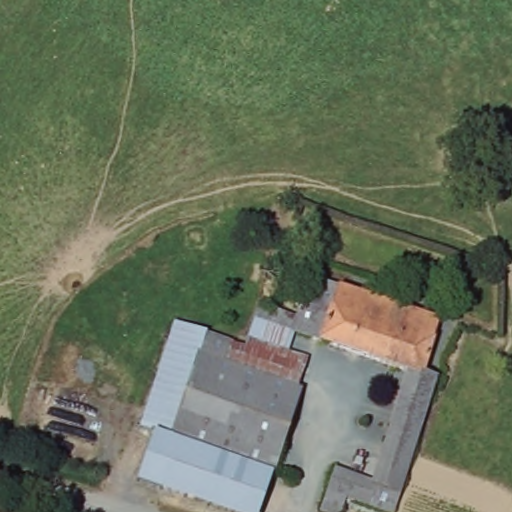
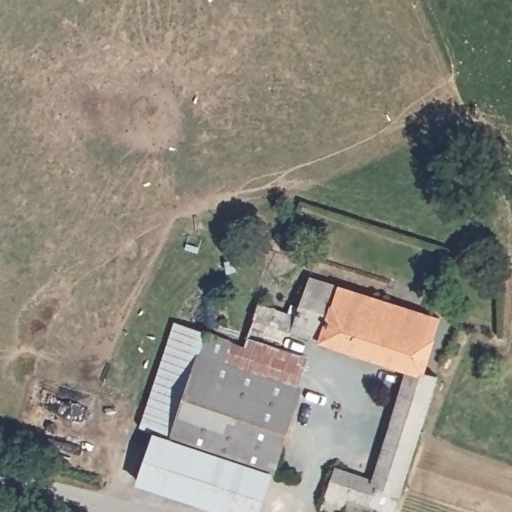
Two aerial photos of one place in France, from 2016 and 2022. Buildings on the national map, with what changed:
unchanged [(423,367),(422,370),(412,367),(408,365),(310,333),(293,328),(253,314),(258,299),(283,309),(288,296),(293,297),(296,289),(303,291),(309,273),(439,314),(423,367)]
unchanged [(287,348),(305,353),(297,383),(223,359),(229,340),(230,337),(242,341),(245,342),(253,314),(293,328),(287,348)]
unchanged [(153,427),(138,422),(174,317),(206,328),(170,433),(153,427)]
unchanged [(170,433),(206,328),(230,337),(229,340),(223,359),(297,383),(299,384),(272,468),(170,433)]
unchanged [(401,485),(372,476),(408,365),(412,367),(422,370),(423,367),(436,371),(401,485)]
unchanged [(153,427),(170,433),(272,468),(257,512),(242,512),(153,482),(136,476),(153,427)]
unchanged [(346,493),(339,512),(320,505),(334,464),(372,476),(401,485),(400,489),(393,509),(346,493)]

